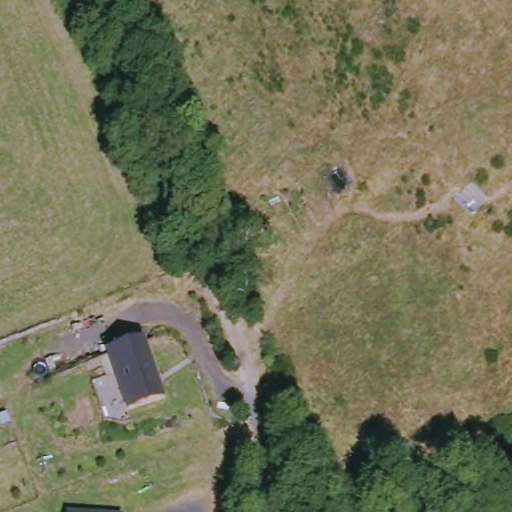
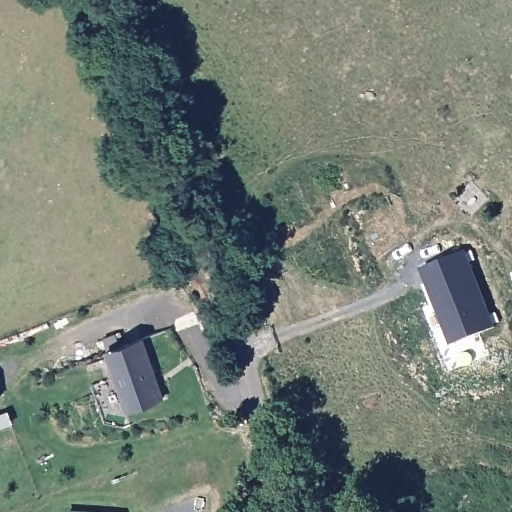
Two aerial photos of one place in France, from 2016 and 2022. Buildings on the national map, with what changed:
new [(496,328),(452,345),(424,266),(465,250),(496,328)]
unchanged [(163,398),(129,411),(107,353),(142,340),(156,378),(159,385),(163,398)]

